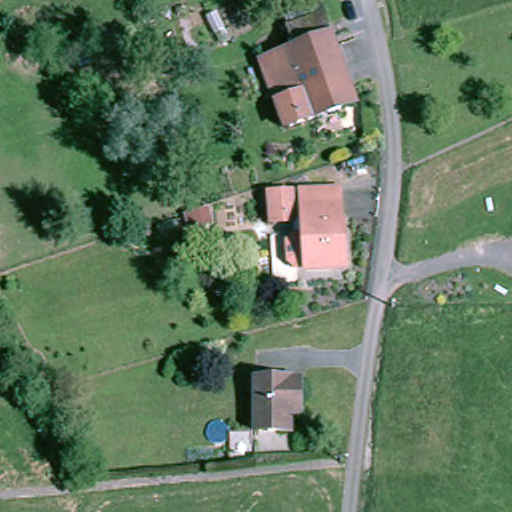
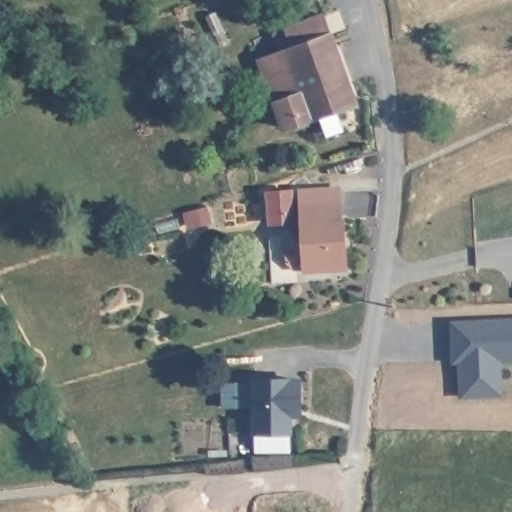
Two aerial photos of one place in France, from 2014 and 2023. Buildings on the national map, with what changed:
unchanged [(287,125),(266,56),(299,46),(293,24),(330,13),(360,103),(287,125)]
unchanged [(332,267),(310,269),(309,264),(300,265),(291,259),(290,239),(298,232),(308,231),(307,202),(306,190),(343,188),(344,199),(346,219),(349,219),(351,262),(351,267),(332,267)]
unchanged [(276,219),(276,209),(276,202),(276,195),(276,189),(296,189),(296,194),(296,209),(296,219),(276,219)]
new [(451,320),(512,318),(512,360),(501,361),(503,396),(460,398),(459,363),(453,363),(451,320)]
unchanged [(287,411),(287,429),(254,429),(254,374),(297,374),(297,398),(297,411),(287,411)]

